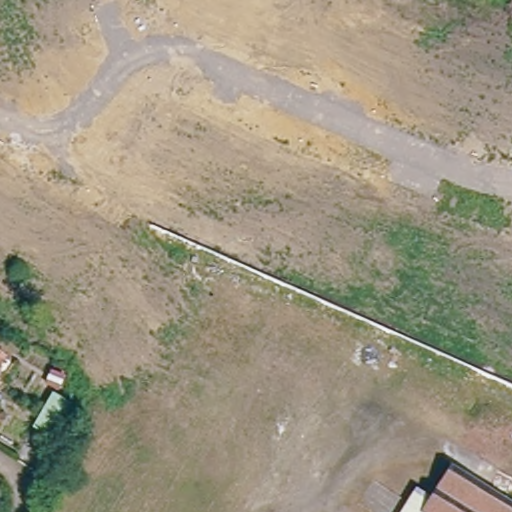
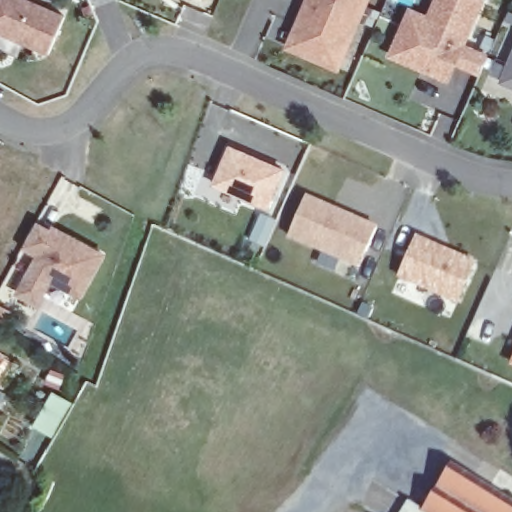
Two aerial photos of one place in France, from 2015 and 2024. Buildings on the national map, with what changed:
new [(43,51),(0,33),(0,0),(26,0),(59,14),(43,51)]
new [(338,72),(284,48),(305,0),(369,0),(338,72)]
new [(430,70),(388,52),(400,25),(408,6),(426,14),(432,0),(478,0),(460,41),(485,52),(477,69),(452,58),(445,76),(430,70)]
unchanged [(512,46),(512,83),(498,77),(512,46)]
new [(227,145),(280,167),(264,205),(211,182),(227,145)]
new [(343,257),(286,232),(303,194),(332,206),(340,209),(375,224),(364,249),(358,263),(343,257)]
new [(21,247),(34,222),(49,231),(51,227),(64,233),(101,253),(79,296),(49,280),(35,304),(15,293),(36,255),(21,247)]
new [(477,261),(458,304),(396,280),(416,235),(477,261)]
unchanged [(60,387),(48,383),(51,374),(64,378),(60,387)]
unchanged [(52,433),(46,430),(35,424),(54,392),(59,395),(70,402),(52,433)]
unchanged [(433,497),(453,465),(512,501),(512,512),(426,512),(425,511),(433,497)]
unchanged [(426,512),(402,512),(417,487),(433,497),(425,511),(426,512)]

